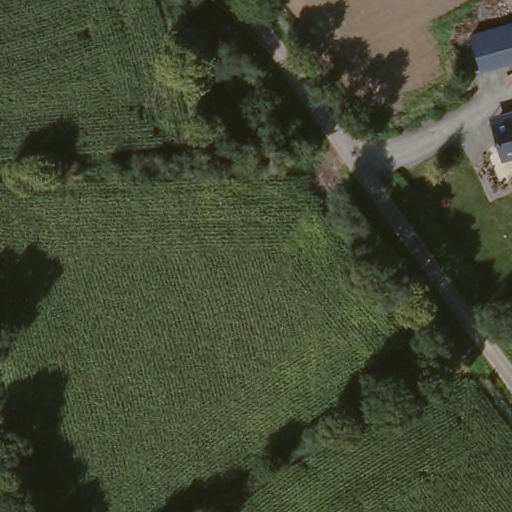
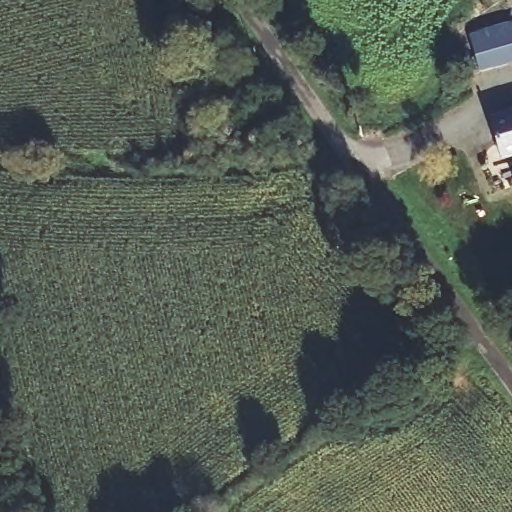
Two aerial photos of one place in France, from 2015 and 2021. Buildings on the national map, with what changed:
unchanged [(512,36),(512,66),(477,74),(470,45),(512,36)]
unchanged [(486,127),(501,124),(500,117),(512,115),(512,159),(495,163),(486,127)]
unchanged [(512,177),(512,183),(510,182),(512,177)]

